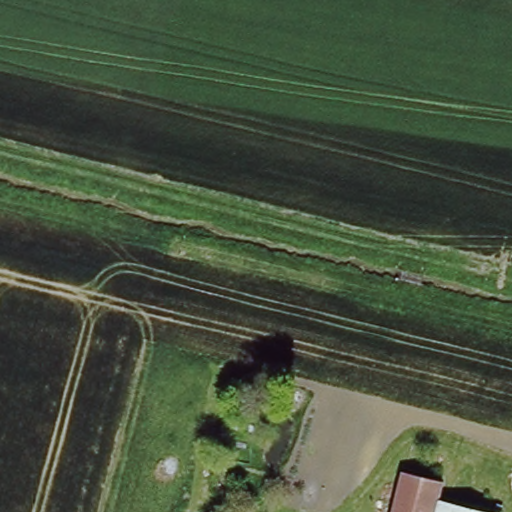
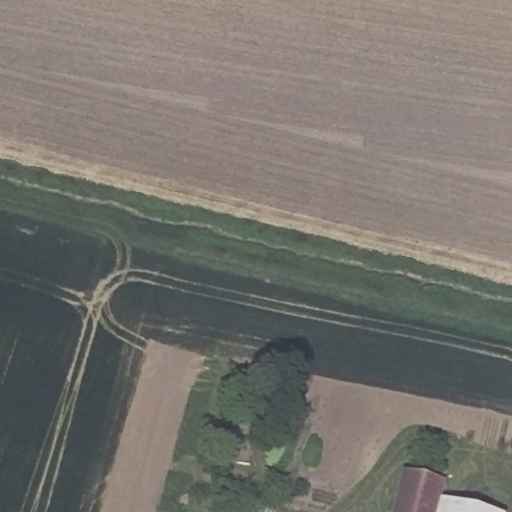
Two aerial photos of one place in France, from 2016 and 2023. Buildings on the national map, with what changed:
unchanged [(400,478),(441,489),(436,503),(464,511),(471,487),(506,497),(502,512),(391,512),(400,478)]

